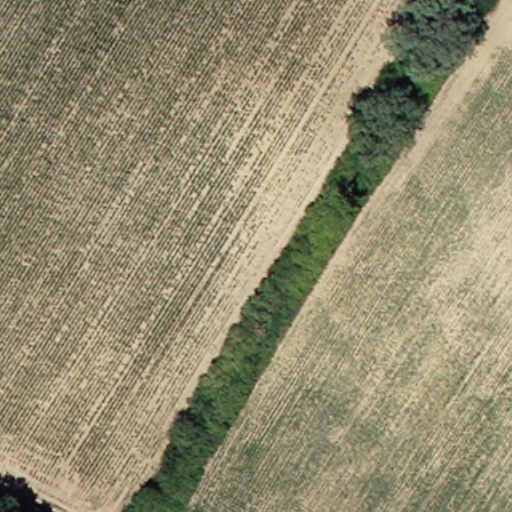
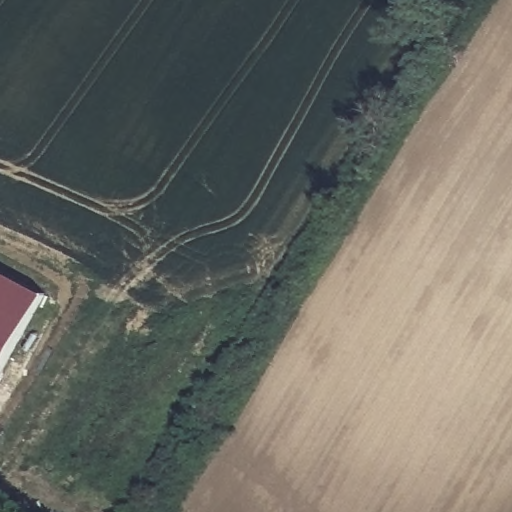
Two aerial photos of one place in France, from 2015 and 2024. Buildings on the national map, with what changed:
new [(0,361),(0,275),(36,294),(0,361)]

